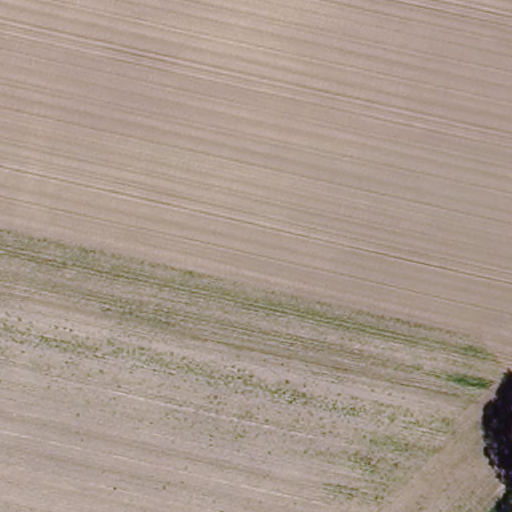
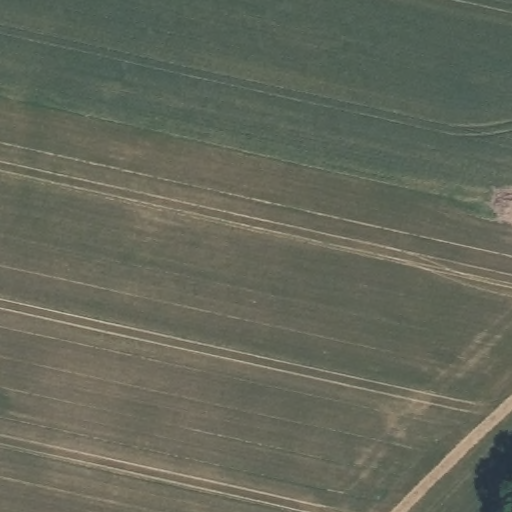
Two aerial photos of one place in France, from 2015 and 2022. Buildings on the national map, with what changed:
[]

